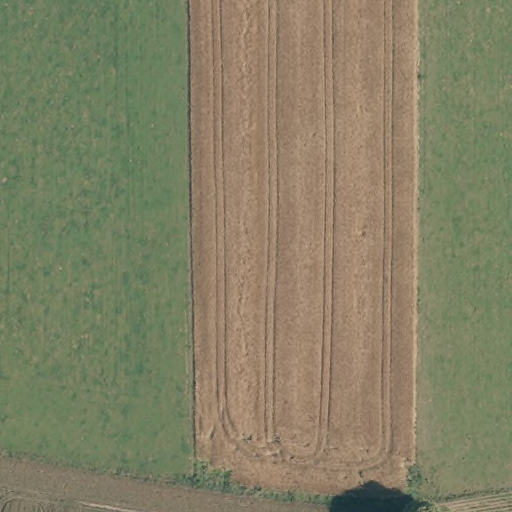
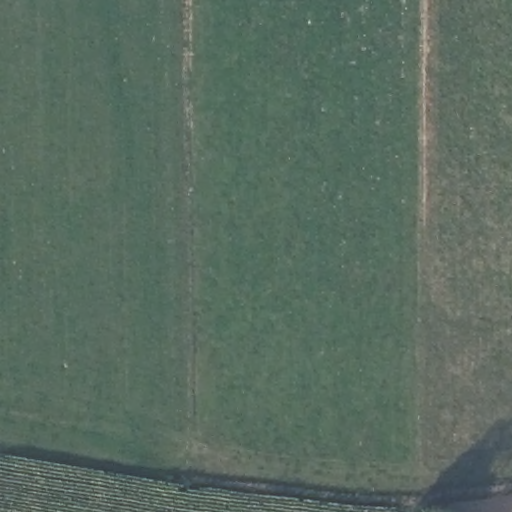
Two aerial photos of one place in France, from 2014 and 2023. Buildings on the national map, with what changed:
[]

